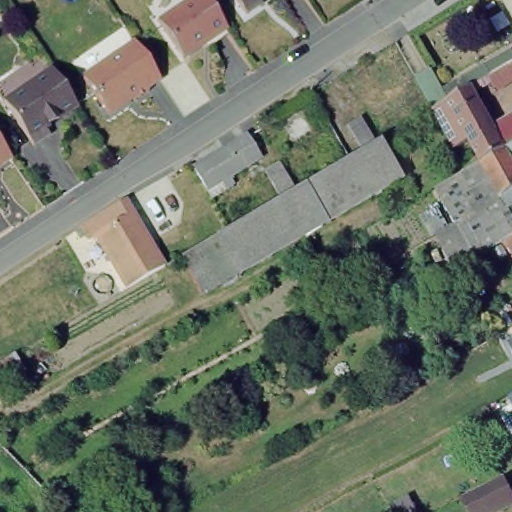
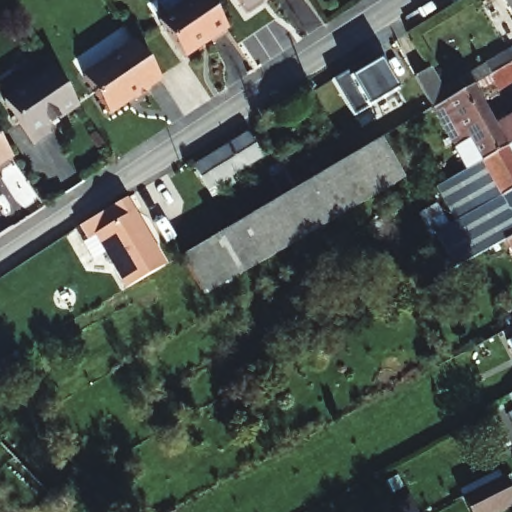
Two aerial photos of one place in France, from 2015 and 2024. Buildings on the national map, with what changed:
unchanged [(209,0),(229,30),(213,41),(213,40),(185,59),(161,24),(195,0),(209,0)]
unchanged [(264,6),(248,16),(237,0),(268,0),(262,4),(264,6)]
unchanged [(512,0),(512,10),(506,0),(512,0)]
unchanged [(133,44),(158,80),(144,89),(146,93),(133,102),(131,99),(106,115),(81,79),(133,44)]
new [(380,58),(398,88),(355,114),(334,79),(354,68),(356,73),(380,58)]
unchanged [(488,245),(449,176),(482,158),(469,137),(457,144),(454,145),(433,106),(434,105),(416,73),(432,64),(450,95),(473,83),(494,124),(512,114),(512,155),(512,156),(512,190),(503,195),(512,212),(512,245),(509,247),(504,237),(488,245)]
unchanged [(43,124),(47,131),(31,141),(3,99),(50,66),(75,102),(43,124)]
demolished [(373,138),(360,144),(347,122),(360,115),(373,138)]
unchanged [(246,134),(257,151),(218,175),(224,185),(211,193),(194,165),(246,134)]
unchanged [(346,157),(349,155),(378,138),(402,177),(369,197),(346,157)]
unchanged [(9,154),(0,161),(0,141),(9,154)]
unchanged [(319,173),(346,157),(369,197),(203,295),(182,254),(231,224),(319,173)]
unchanged [(488,245),(476,253),(437,184),(449,176),(488,245)]
unchanged [(125,291),(94,239),(88,243),(80,229),(123,202),(124,202),(132,214),(147,240),(163,268),(125,291)]
unchanged [(512,499),(485,512),(466,512),(457,494),(499,473),(512,499)]

